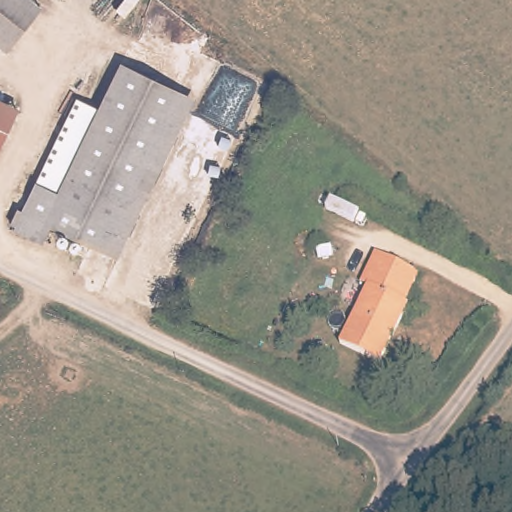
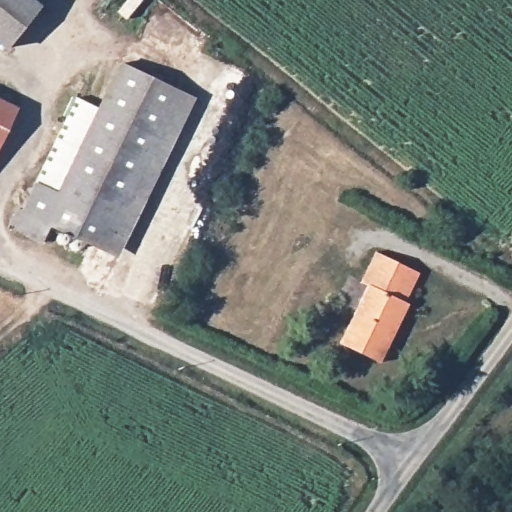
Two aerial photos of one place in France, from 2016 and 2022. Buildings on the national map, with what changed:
unchanged [(19,39),(0,30),(0,0),(38,0),(19,39)]
unchanged [(116,249),(52,226),(62,199),(67,187),(123,39),(187,63),(146,170),(116,249)]
unchanged [(19,101),(0,140),(0,92),(19,101)]
unchanged [(46,244),(16,234),(19,231),(17,226),(12,225),(17,215),(24,215),(34,190),(62,199),(52,226),(46,244)]
unchanged [(402,302),(409,305),(383,362),(342,343),(369,283),(355,277),(371,250),(417,271),(402,302)]

